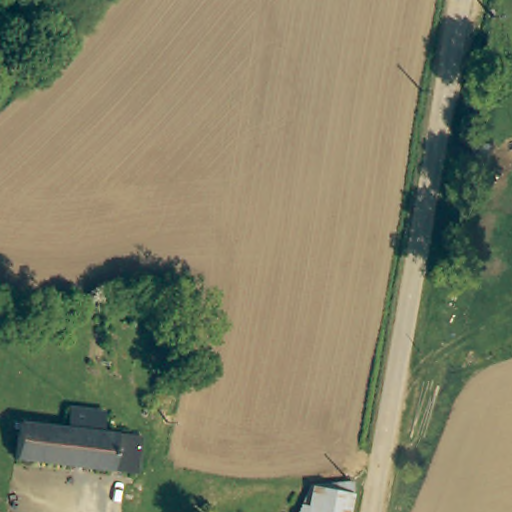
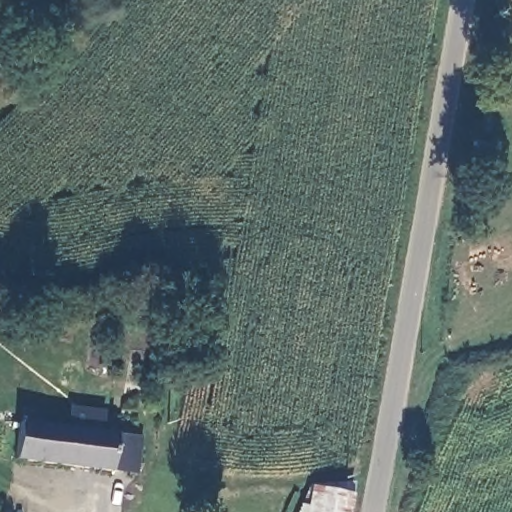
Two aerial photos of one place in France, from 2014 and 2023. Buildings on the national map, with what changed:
unchanged [(112,465),(23,458),(25,423),(120,430),(140,432),(130,467),(112,465)]
unchanged [(353,488),(349,512),(303,512),(310,495),(353,488)]

